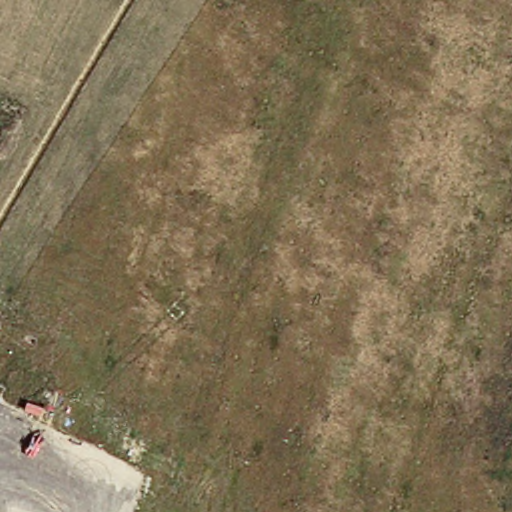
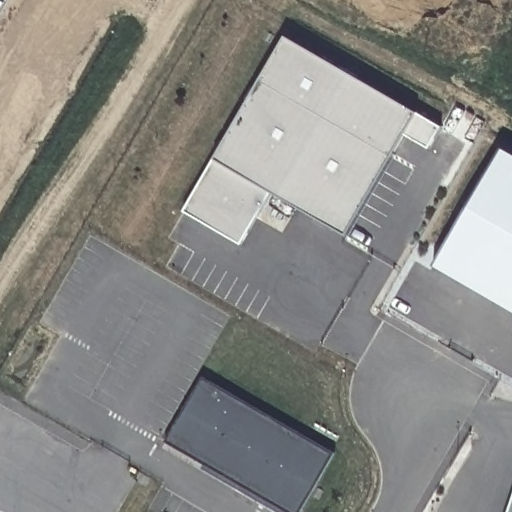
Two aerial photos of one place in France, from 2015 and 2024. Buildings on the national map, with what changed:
new [(429,150),(405,136),(345,237),(271,192),(241,246),(182,212),(214,158),(285,36),(417,113),(441,128),(429,150)]
new [(512,158),(512,313),(430,267),(498,150),(512,158)]
new [(163,445),(199,380),(331,454),(299,512),(275,512),(199,471),(201,466),(163,445)]
new [(512,501),(512,512),(508,512),(512,501)]

